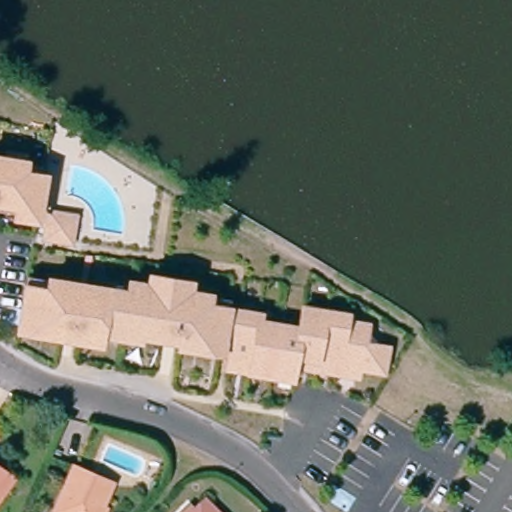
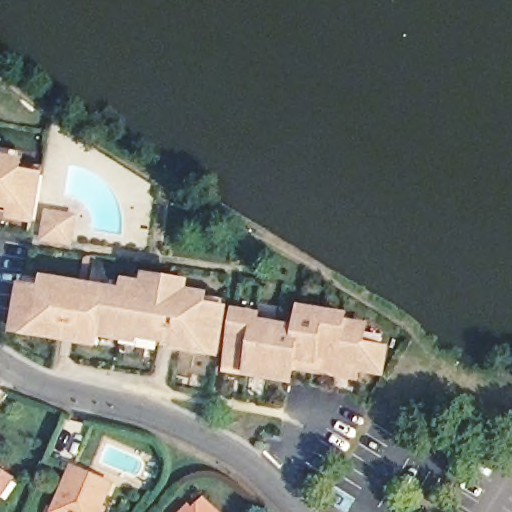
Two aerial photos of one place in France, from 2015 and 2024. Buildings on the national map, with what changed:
unchanged [(5,157),(7,148),(29,152),(28,161),(27,164),(47,167),(39,222),(18,218),(19,212),(0,209),(0,157),(5,157)]
unchanged [(48,237),(52,212),(77,217),(73,241),(48,237)]
unchanged [(133,337),(133,340),(113,337),(90,333),(89,342),(70,340),(71,336),(55,333),(54,337),(34,333),(11,330),(18,285),(20,275),(40,278),(78,285),(98,288),(99,278),(119,282),(136,284),(138,275),(184,282),(183,292),(203,295),(222,298),(221,308),(213,353),(192,350),(172,346),(173,342),(133,337)]
unchanged [(253,373),(228,370),(220,368),(228,321),(229,310),(250,313),(248,325),(289,331),(291,319),(293,307),(336,313),(334,326),(355,329),(353,342),(375,345),(371,371),(348,367),(346,377),(338,375),(313,371),(297,368),(284,366),(283,369),(282,378),(269,376),(253,373)]
unchanged [(4,500),(0,497),(0,467),(9,474),(17,480),(4,500)]
unchanged [(68,469),(103,483),(92,512),(51,512),(68,469)]
unchanged [(214,512),(176,512),(183,503),(192,510),(202,501),(214,512)]

